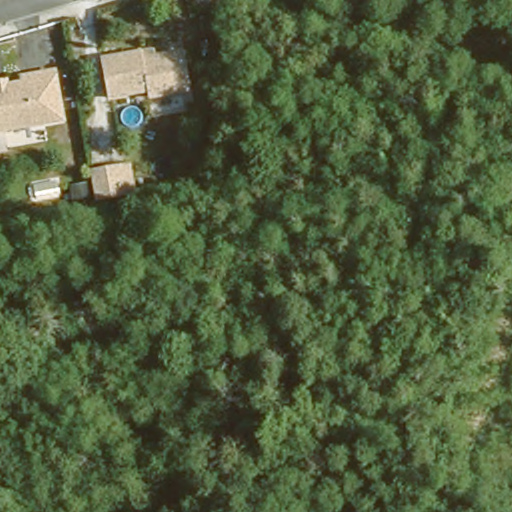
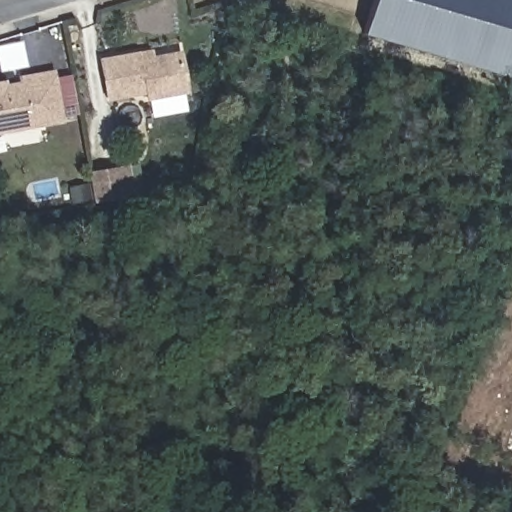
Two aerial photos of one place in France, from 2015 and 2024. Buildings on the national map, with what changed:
new [(382,0),(512,0),(512,75),(373,33),(382,0)]
unchanged [(187,84),(150,92),(147,85),(112,94),(102,57),(138,50),(150,47),(152,55),(181,48),(187,84)]
unchanged [(1,82),(4,80),(7,76),(22,73),(24,66),(50,62),(57,111),(0,122),(0,83),(1,82)]
unchanged [(96,199),(92,169),(121,164),(131,163),(136,192),(126,194),(99,198),(96,199)]

